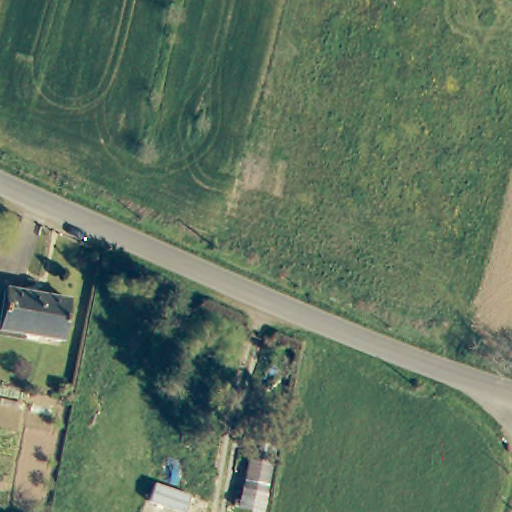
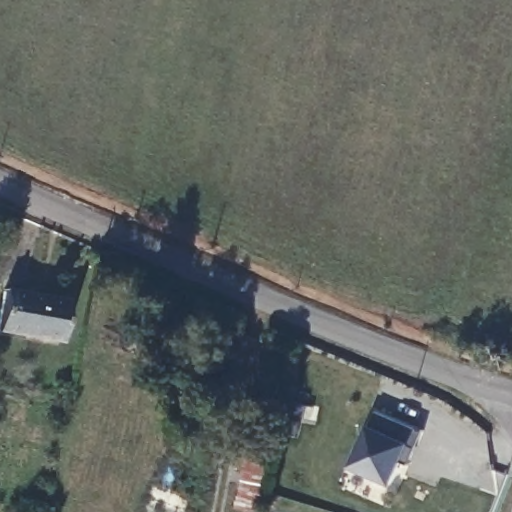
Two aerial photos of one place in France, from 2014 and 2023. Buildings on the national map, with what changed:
unchanged [(65,300),(56,342),(0,330),(0,312),(5,288),(65,300)]
new [(350,469),(376,410),(424,430),(410,465),(404,463),(393,486),(350,469)]
unchanged [(250,432),(273,439),(262,492),(242,486),(250,432)]

